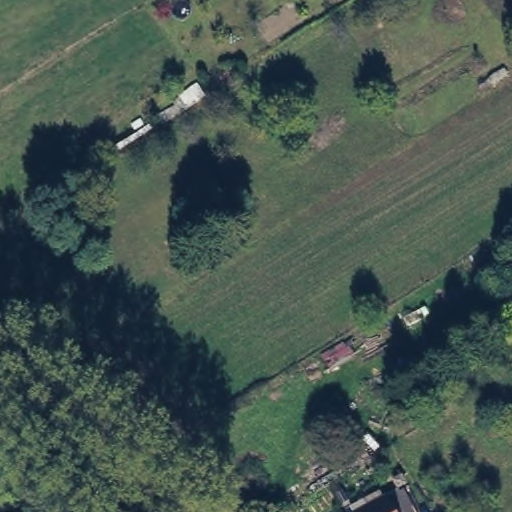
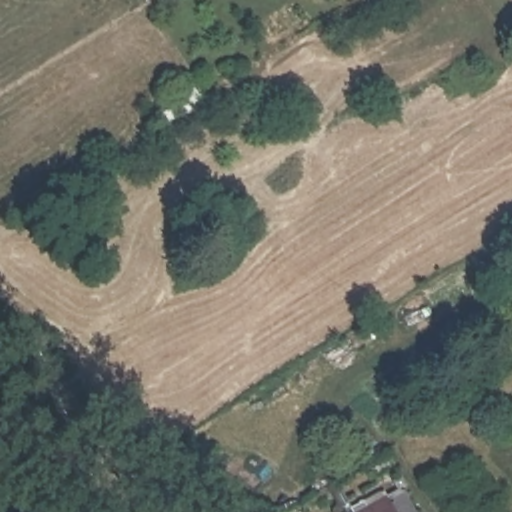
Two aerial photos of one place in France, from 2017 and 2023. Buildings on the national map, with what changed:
unchanged [(416,512),(361,512),(402,489),(416,512)]

